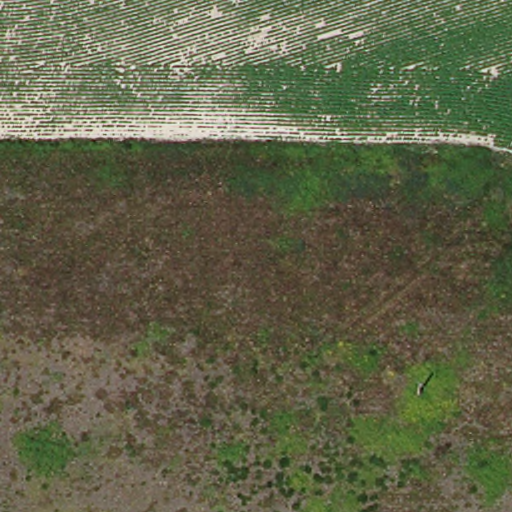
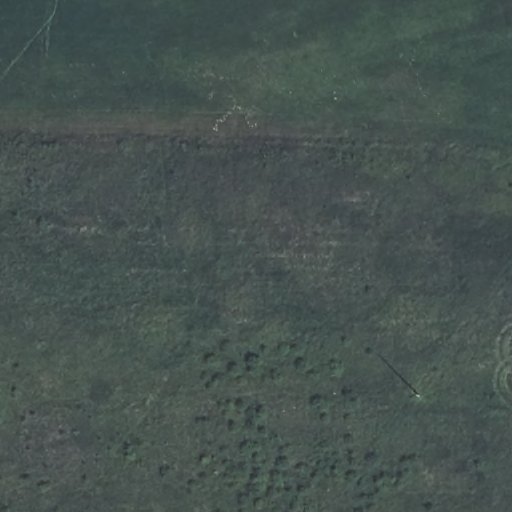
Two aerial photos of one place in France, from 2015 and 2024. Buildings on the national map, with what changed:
[]

